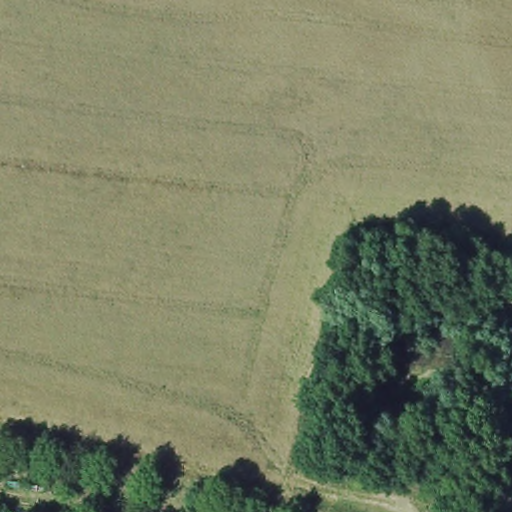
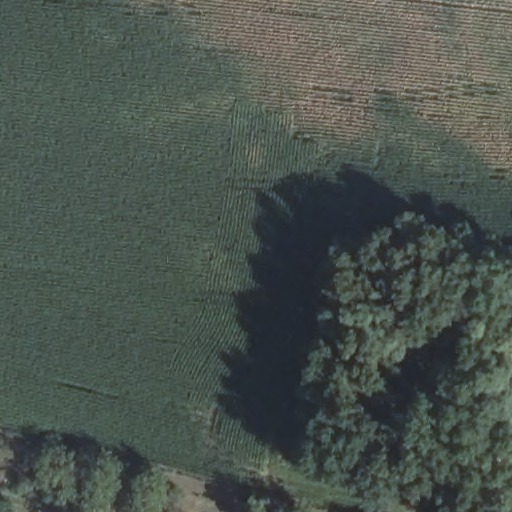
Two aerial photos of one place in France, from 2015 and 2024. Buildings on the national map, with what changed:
unchanged [(0,512),(0,511),(5,512),(0,512)]

